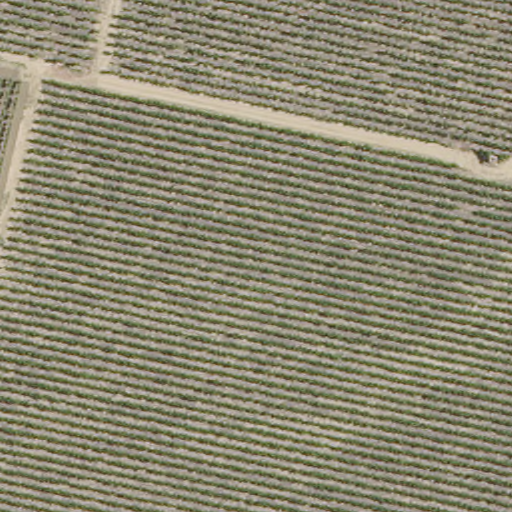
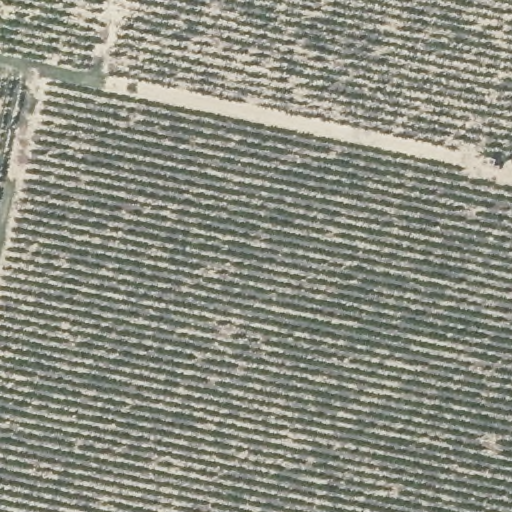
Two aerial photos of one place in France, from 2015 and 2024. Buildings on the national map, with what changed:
unchanged [(502,153),(502,170),(472,165),(472,150),(502,153)]

